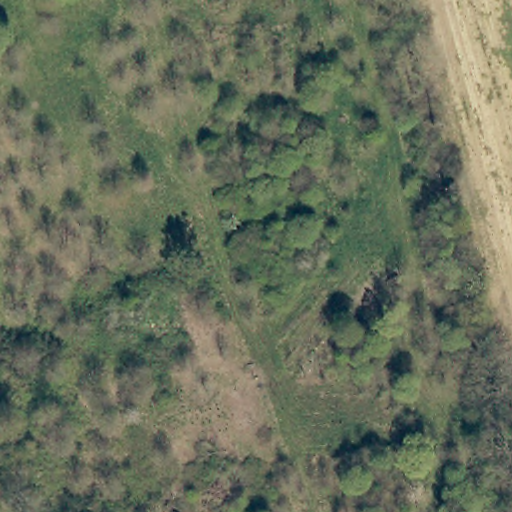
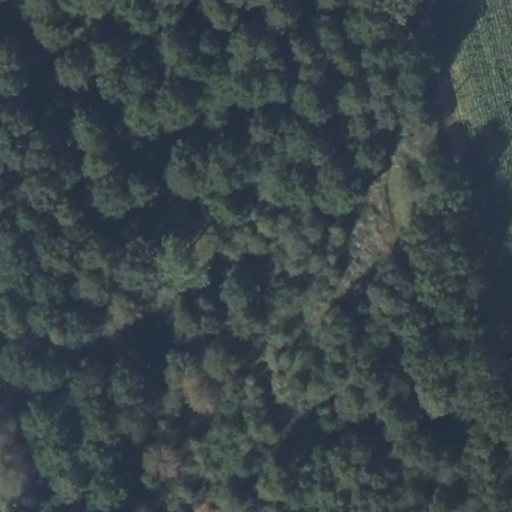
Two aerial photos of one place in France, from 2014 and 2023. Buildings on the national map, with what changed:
[]

